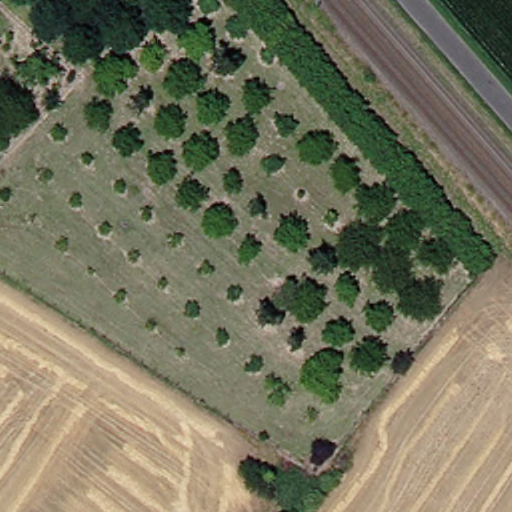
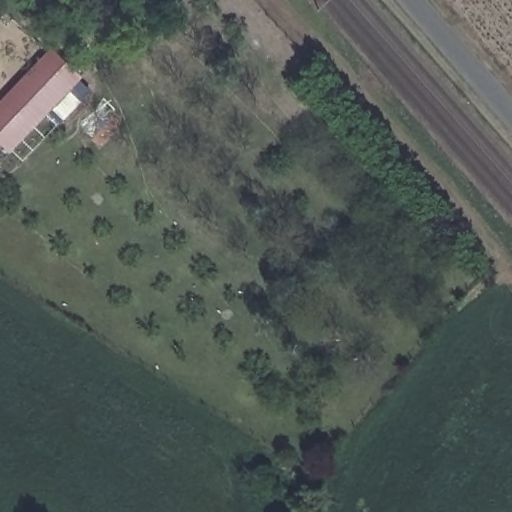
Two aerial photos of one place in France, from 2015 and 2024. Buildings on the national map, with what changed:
new [(10,152),(0,142),(0,104),(52,51),(80,78),(10,152)]

